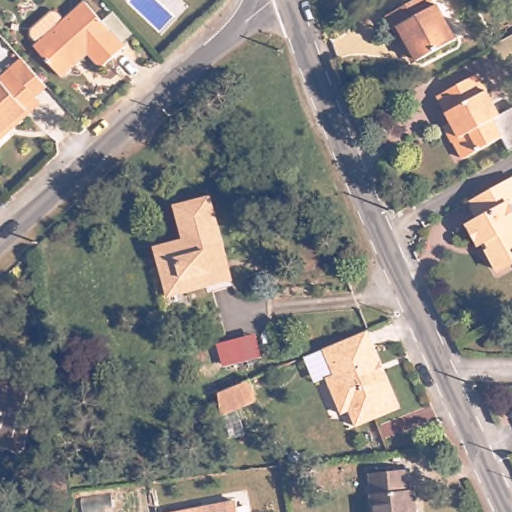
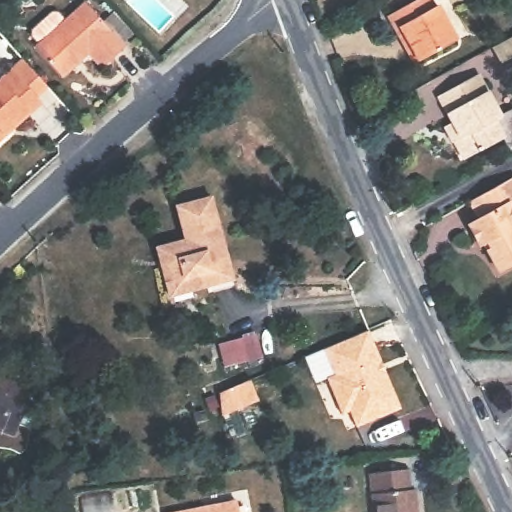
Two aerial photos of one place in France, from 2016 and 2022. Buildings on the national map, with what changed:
unchanged [(404,31),(400,33),(390,18),(422,0),(433,0),(437,9),(440,8),(445,15),(407,36),(404,31)]
unchanged [(62,12),(72,23),(92,5),(132,49),(110,69),(96,54),(70,79),(43,49),(47,46),(37,35),(62,12)]
unchanged [(445,15),(460,41),(422,62),(407,36),(445,15)]
unchanged [(494,45),(512,34),(512,53),(503,58),(494,45)]
unchanged [(24,117),(1,138),(4,141),(0,144),(0,84),(10,76),(21,66),(45,93),(35,104),(22,115),(24,117)]
unchanged [(487,80),(510,122),(512,121),(512,149),(476,168),(466,151),(456,131),(463,127),(450,101),(487,80)]
unchanged [(512,267),(510,268),(498,248),(503,246),(496,236),(490,240),(479,220),(489,215),(480,197),(512,178),(512,267)]
unchanged [(172,280),(163,242),(191,235),(182,201),(216,192),(238,276),(195,287),(175,292),(172,280)]
unchanged [(381,363),(387,377),(403,410),(359,429),(352,414),(344,418),(326,381),(335,377),(322,351),(367,332),(381,363)]
unchanged [(38,388),(31,409),(40,412),(35,426),(27,424),(22,436),(0,428),(0,376),(38,388)]
unchanged [(250,388),(260,408),(222,425),(219,400),(250,388)]
unchanged [(415,487),(418,486),(423,512),(379,512),(373,471),(412,466),(415,487)]
unchanged [(242,512),(175,512),(239,497),(242,512)]

